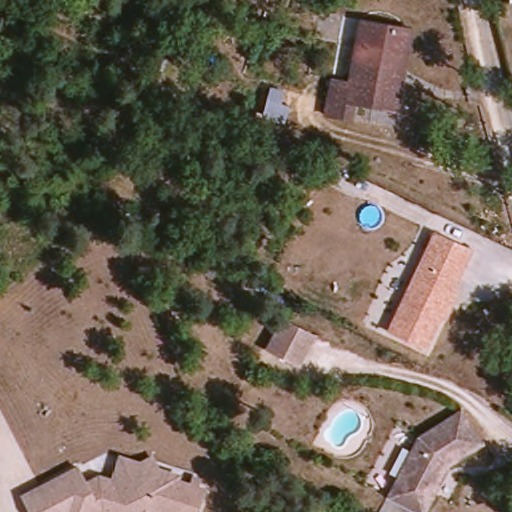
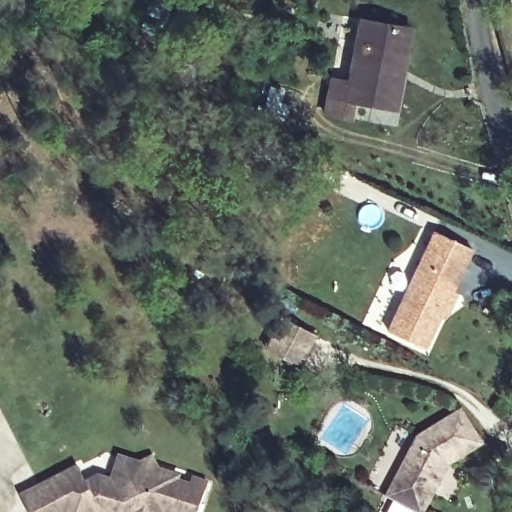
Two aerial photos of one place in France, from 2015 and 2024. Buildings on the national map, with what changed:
unchanged [(355,106),(352,119),(325,114),(332,81),(350,85),(363,21),(404,30),(414,32),(404,79),(397,112),(355,106)]
unchanged [(437,315),(422,346),(384,328),(432,230),(470,247),(450,290),(454,291),(447,305),(442,317),(437,315)]
unchanged [(269,352),(285,321),(316,337),(300,368),(269,352)]
unchanged [(464,403),(484,437),(450,458),(424,509),(389,490),(420,430),(464,403)]
unchanged [(87,482),(97,475),(109,480),(120,450),(141,458),(152,453),(160,467),(183,475),(183,482),(205,490),(197,512),(29,512),(20,493),(77,465),(87,482)]

